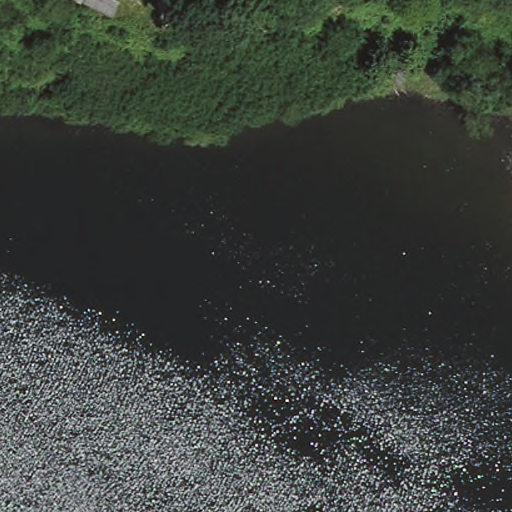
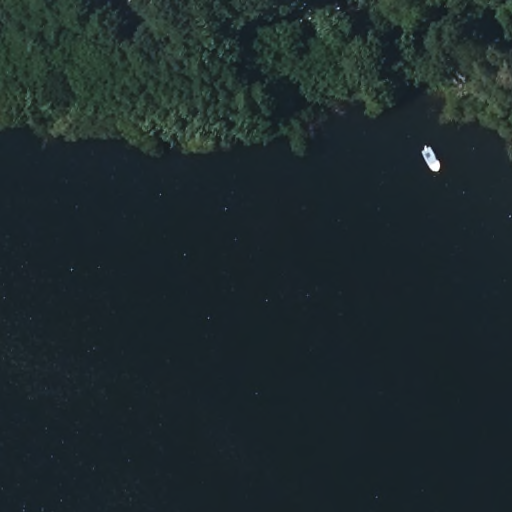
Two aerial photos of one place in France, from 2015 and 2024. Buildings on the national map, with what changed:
unchanged [(86,1),(80,0),(86,0),(86,1)]

